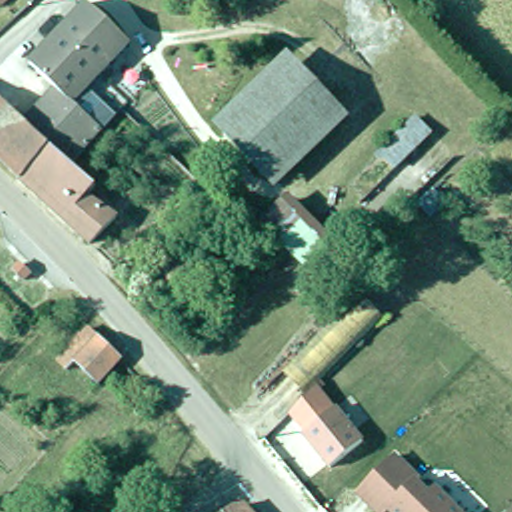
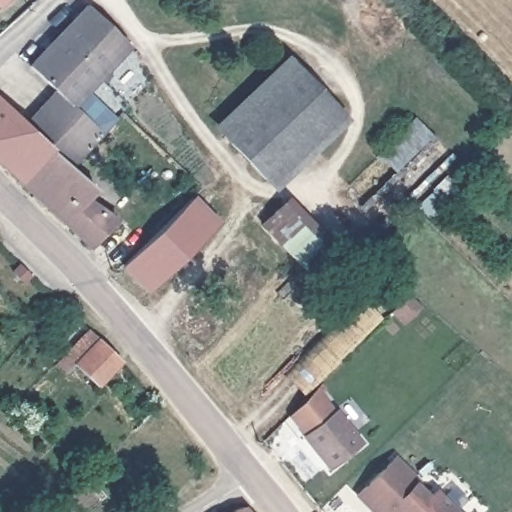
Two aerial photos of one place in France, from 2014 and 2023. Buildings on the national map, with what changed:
unchanged [(101,96),(84,80),(83,81),(41,44),(78,2),(106,27),(120,40),(95,68),(112,84),(101,96)]
unchanged [(83,81),(63,103),(47,88),(22,65),(41,44),(83,81)]
unchanged [(295,64),(338,109),(266,178),(223,133),(295,64)]
unchanged [(65,164),(43,144),(16,122),(47,88),(63,103),(96,131),(65,164)]
unchanged [(11,178),(0,168),(0,107),(16,122),(43,144),(11,178)]
unchanged [(413,111),(430,130),(395,164),(377,146),(413,111)]
unchanged [(104,216),(80,242),(11,178),(43,144),(65,164),(84,184),(77,190),(104,216)]
unchanged [(280,194),(318,234),(290,259),(256,223),(280,194)]
new [(222,223),(150,294),(122,266),(195,195),(222,223)]
unchanged [(359,291),(382,314),(303,393),(280,371),(359,291)]
unchanged [(95,377),(76,359),(69,368),(55,356),(85,323),(97,334),(117,353),(95,377)]
new [(305,434),(289,417),(318,388),(336,408),(307,432),(305,434)]
unchanged [(307,432),(340,405),(366,439),(334,466),(307,432)]
unchanged [(393,508),(388,512),(383,512),(361,491),(398,454),(423,478),(420,480),(433,493),(440,487),(465,512),(397,512),(393,508)]
demolished [(228,507),(239,502),(248,512),(220,512),(228,507)]
new [(252,512),(228,512),(246,506),(252,512)]

